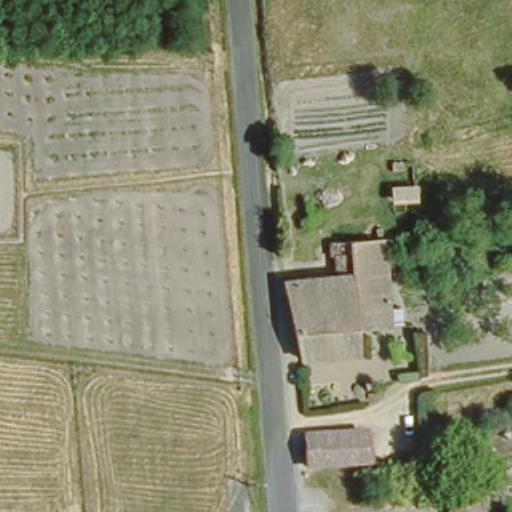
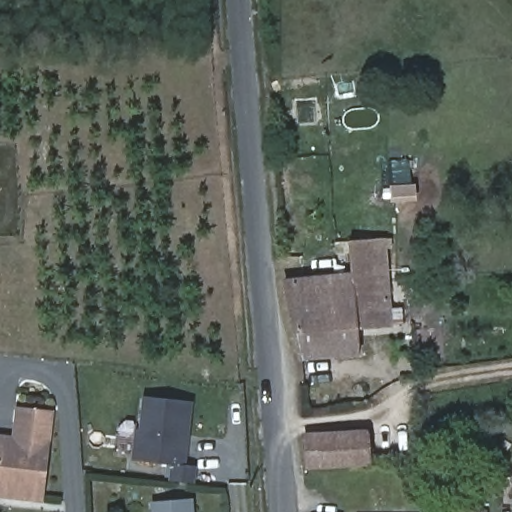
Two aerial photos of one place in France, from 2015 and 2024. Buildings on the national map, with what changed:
unchanged [(410,188),(410,198),(390,200),(389,189),(410,188)]
unchanged [(337,270),(337,238),(390,234),(391,247),(385,248),(390,324),(357,326),(297,330),(286,277),(337,270)]
unchanged [(357,326),(359,350),(301,355),(297,330),(357,326)]
new [(141,429),(144,397),(194,402),(187,466),(197,467),(195,483),(168,482),(170,464),(132,461),(135,429),(141,429)]
new [(46,504),(0,499),(0,434),(13,435),(17,407),(57,411),(46,504)]
unchanged [(306,431),(361,429),(362,460),(309,464),(306,431)]
unchanged [(474,491),(477,512),(450,512),(447,493),(474,491)]
new [(194,499),(194,512),(152,512),(151,502),(194,499)]

